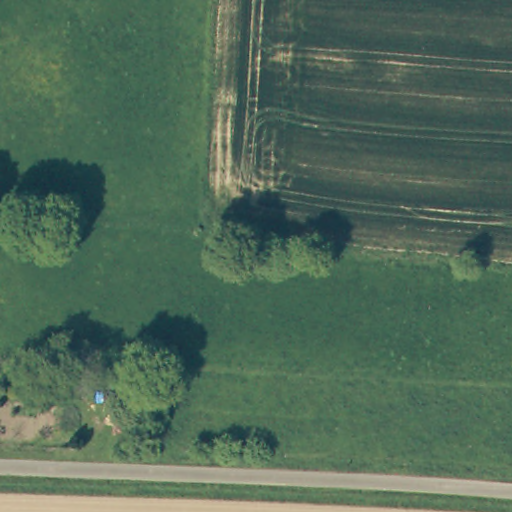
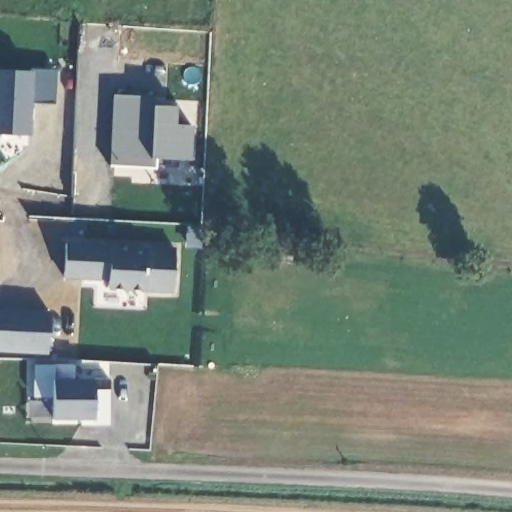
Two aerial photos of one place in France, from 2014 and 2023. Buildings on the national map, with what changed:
new [(27,70),(27,67),(55,71),(53,104),(30,103),(27,135),(0,134),(0,69),(27,70)]
new [(108,165),(111,94),(152,96),(152,105),(174,106),(174,124),(190,125),(188,159),(155,158),(154,168),(108,165)]
new [(65,242),(109,244),(146,246),(174,247),(171,292),(144,291),(107,289),(109,280),(63,278),(65,242)]
new [(46,312),(45,355),(0,353),(0,310),(46,312)]
new [(32,364),(53,364),(54,378),(94,378),(94,389),(108,390),(107,424),(80,425),(80,419),(51,418),(52,396),(31,396),(32,364)]

